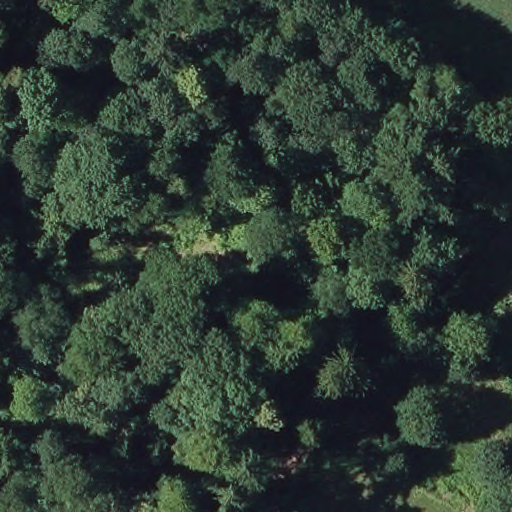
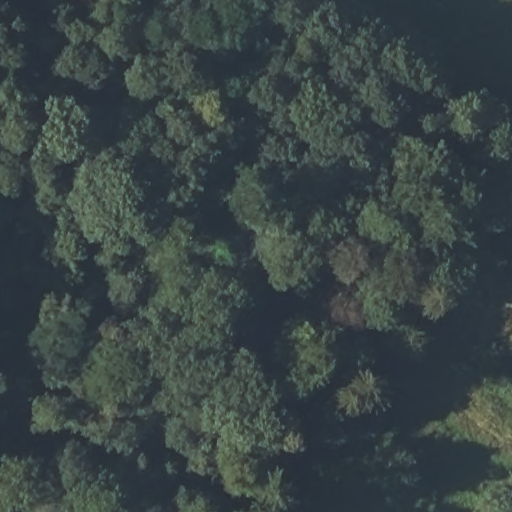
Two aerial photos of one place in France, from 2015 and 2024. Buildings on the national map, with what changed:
[]

